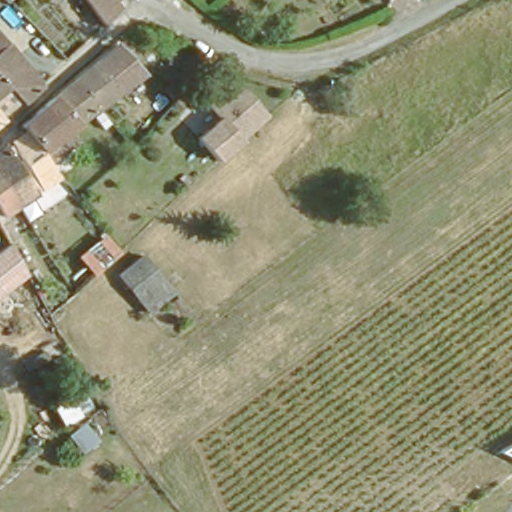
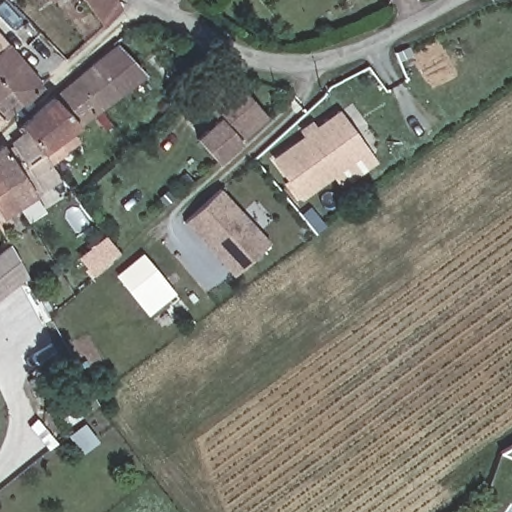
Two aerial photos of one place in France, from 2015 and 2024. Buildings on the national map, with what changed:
unchanged [(123,1),(106,17),(94,0),(122,0),(123,1)]
unchanged [(41,81),(23,98),(18,103),(0,119),(0,33),(18,53),(41,81)]
unchanged [(79,75),(119,43),(125,51),(141,38),(156,58),(141,71),(98,105),(79,120),(58,92),(79,75)]
unchanged [(158,88),(164,81),(154,72),(177,38),(207,61),(175,100),(158,88)]
unchanged [(234,90),(263,116),(217,159),(189,132),(234,90)]
unchanged [(43,185),(28,161),(10,135),(24,123),(58,92),(79,120),(43,149),(61,175),(43,185)]
new [(299,130),(312,120),(317,126),(340,110),(369,151),(300,201),(271,158),(303,136),(299,130)]
unchanged [(35,190),(18,199),(0,171),(0,144),(6,139),(35,190)]
unchanged [(0,210),(0,171),(18,199),(0,210)]
new [(233,275),(184,222),(220,189),(270,242),(233,275)]
unchanged [(23,235),(14,243),(7,231),(17,225),(23,235)]
new [(108,238),(121,253),(93,278),(80,263),(108,238)]
unchanged [(27,276),(0,297),(0,252),(9,246),(27,276)]
unchanged [(142,249),(171,284),(182,274),(203,292),(182,315),(165,297),(143,310),(116,267),(142,249)]
unchanged [(80,456),(68,440),(86,423),(99,440),(80,456)]
demolished [(505,499),(495,485),(512,470),(512,494),(505,499)]

